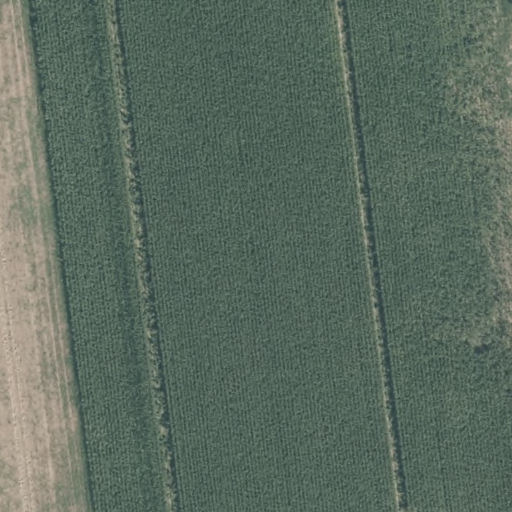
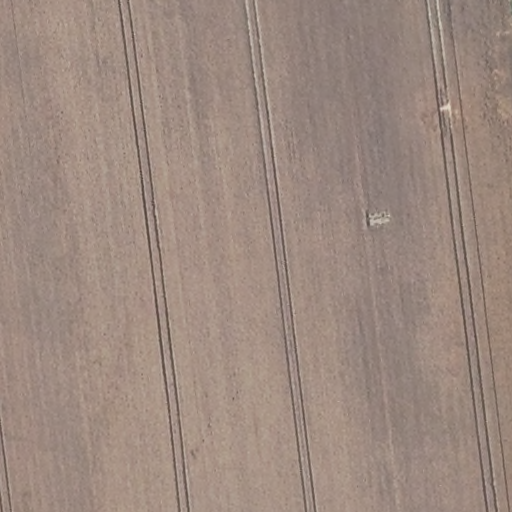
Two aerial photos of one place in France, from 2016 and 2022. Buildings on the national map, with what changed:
[]

